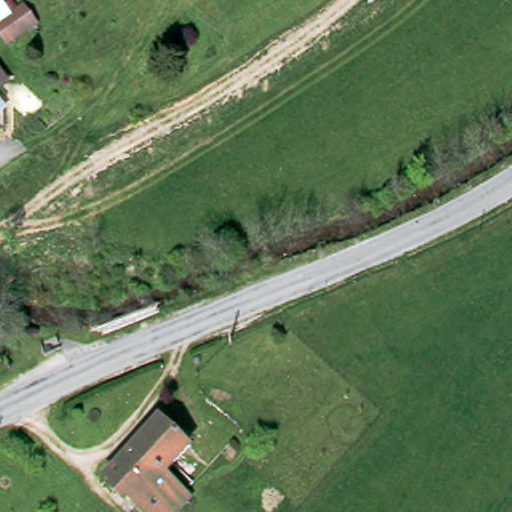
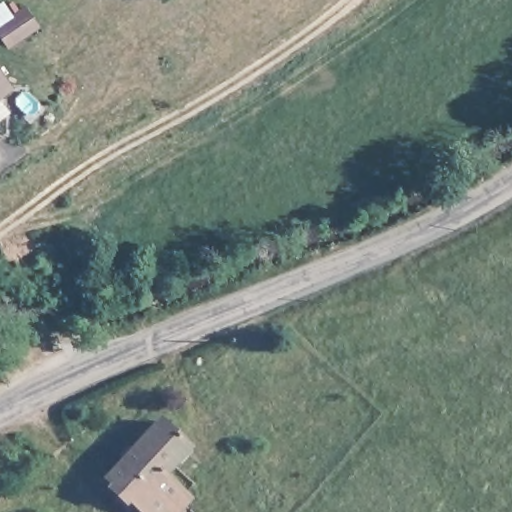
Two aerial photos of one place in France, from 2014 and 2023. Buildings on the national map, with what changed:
unchanged [(0,84),(0,75),(4,81),(0,84)]
unchanged [(140,512),(100,480),(153,418),(189,448),(166,475),(186,492),(169,512),(140,512)]

